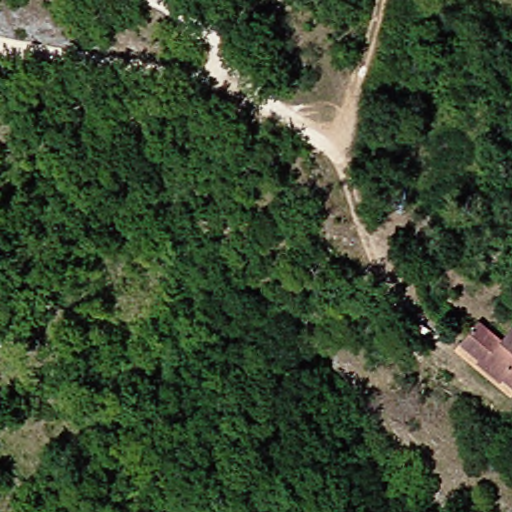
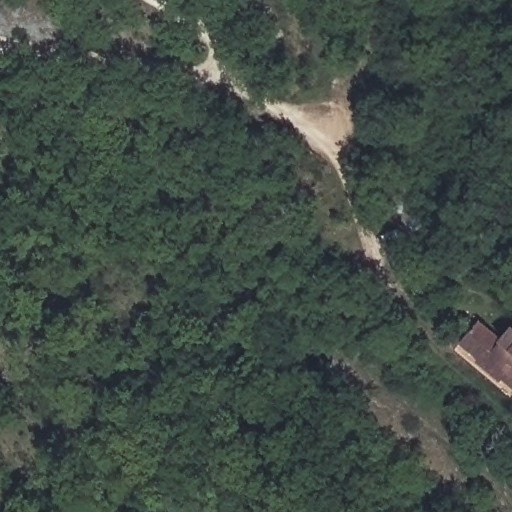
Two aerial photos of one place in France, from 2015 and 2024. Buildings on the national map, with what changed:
unchanged [(474,327),(497,345),(506,332),(512,326),(512,387),(507,393),(456,348),(474,327)]

